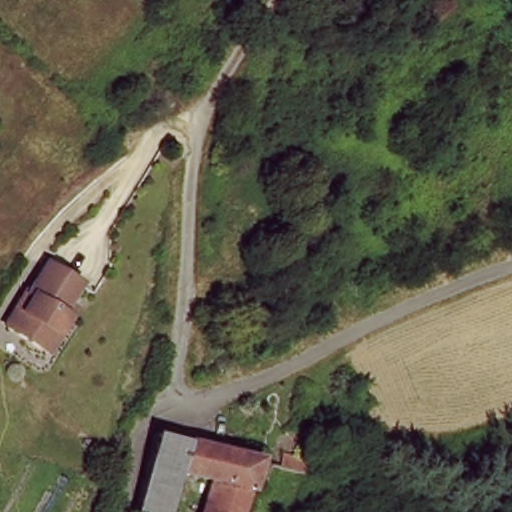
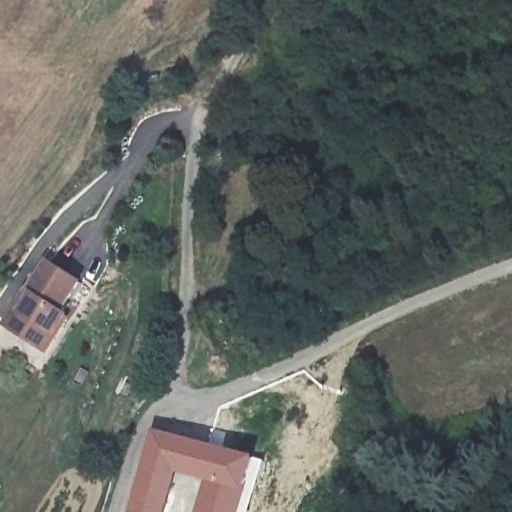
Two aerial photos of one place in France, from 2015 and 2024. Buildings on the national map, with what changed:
unchanged [(13,313),(26,295),(23,293),(42,261),(77,285),(59,314),(66,317),(43,355),(0,331),(0,322),(7,310),(13,313)]
unchanged [(213,479),(178,469),(166,512),(132,512),(155,431),(254,460),(245,489),(213,479)]
unchanged [(213,479),(245,489),(238,512),(202,512),(213,479)]

